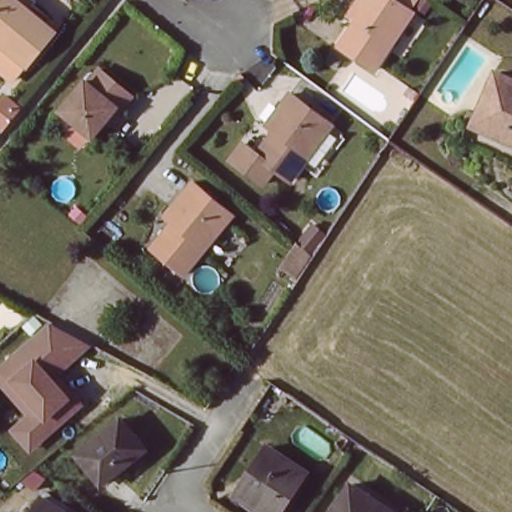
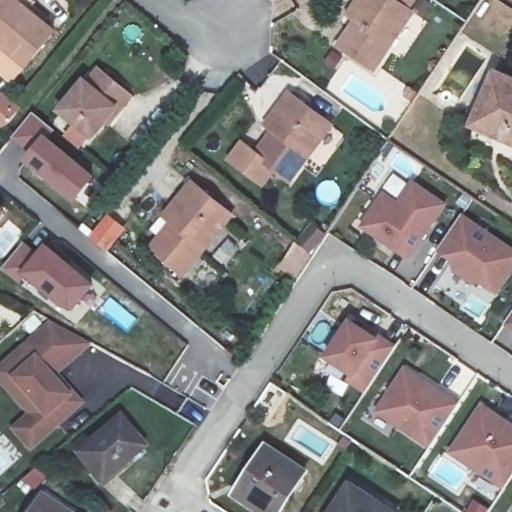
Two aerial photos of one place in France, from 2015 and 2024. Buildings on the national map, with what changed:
unchanged [(0,62),(0,11),(3,8),(10,0),(11,0),(31,16),(24,25),(50,46),(23,80),(0,62)]
unchanged [(373,66),(338,41),(355,16),(347,11),(355,0),(402,0),(413,8),(373,66)]
unchanged [(103,116),(90,133),(58,107),(83,77),(85,79),(97,65),(130,93),(118,108),(108,119),(103,116)]
unchanged [(492,71),(512,79),(512,142),(470,125),(492,71)]
unchanged [(330,124),(289,179),(273,168),(262,184),(229,159),(241,144),(255,154),(274,129),(266,124),(279,108),(289,94),(330,124)]
new [(54,132),(50,138),(95,175),(75,202),(23,160),(29,152),(12,138),(33,114),(54,132)]
new [(442,204),(407,256),(392,245),(394,243),(387,238),(384,241),(361,225),(383,193),(398,204),(411,182),(442,204)]
unchanged [(234,216),(187,274),(153,248),(175,222),(166,215),(172,209),(194,183),(234,216)]
new [(0,220),(0,204),(8,210),(0,220)]
new [(461,214),(512,249),(512,271),(496,298),(479,285),(472,286),(452,273),(450,260),(437,252),(461,214)]
new [(108,252),(93,239),(109,219),(124,232),(108,252)]
new [(24,243),(37,255),(46,243),(96,285),(73,314),(27,277),(21,284),(1,269),(24,243)]
new [(512,311),(512,331),(503,324),(512,311)]
new [(374,339),(377,334),(394,346),(364,391),(347,379),(351,374),(326,357),(349,320),(374,339)]
unchanged [(54,374),(74,397),(81,406),(30,452),(12,429),(25,415),(0,384),(0,367),(51,324),(91,347),(54,374)]
new [(456,407),(429,447),(376,412),(403,371),(456,407)]
new [(509,426),(506,430),(512,434),(512,474),(503,489),(449,453),(479,407),(509,426)]
unchanged [(116,418),(141,447),(98,482),(74,452),(116,418)]
unchanged [(269,448),(307,472),(281,512),(265,512),(239,496),(269,448)]
unchanged [(350,486),(390,512),(332,512),(350,486)]
unchanged [(41,495),(70,512),(30,512),(41,495)]

